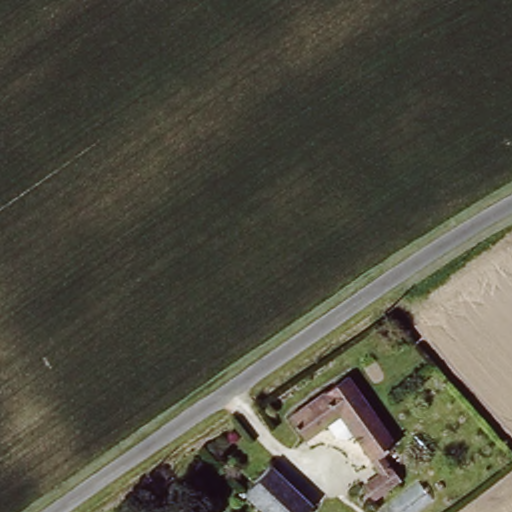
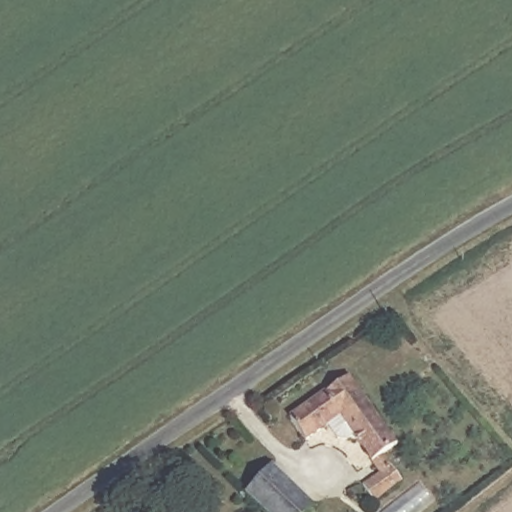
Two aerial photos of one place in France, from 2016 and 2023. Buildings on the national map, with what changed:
unchanged [(288,417),(324,390),(341,413),(304,439),(288,417)]
unchanged [(376,500),(364,483),(381,471),(346,418),(356,411),(348,400),(362,391),(397,444),(385,452),(404,480),(376,500)]
unchanged [(244,493),(269,468),(310,505),(304,512),(264,512),(244,493)]

